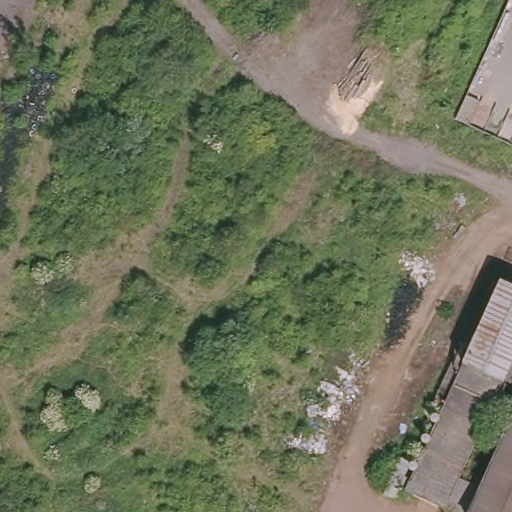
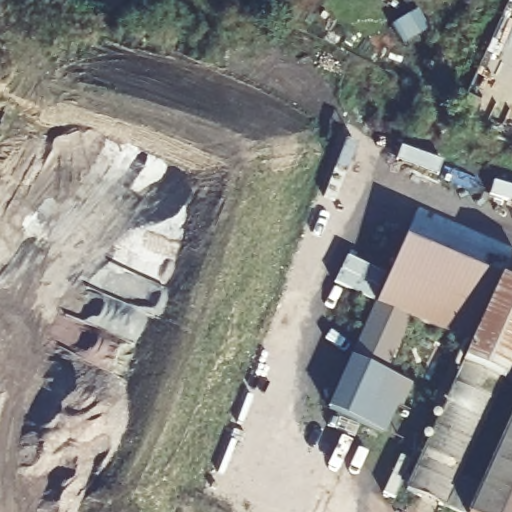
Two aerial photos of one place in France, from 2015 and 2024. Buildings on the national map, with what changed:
new [(500,279),(470,346),(408,319),(375,305),(405,239),(500,279)]
unchanged [(445,406),(434,402),(454,356),(463,359),(498,283),(502,276),(512,280),(512,366),(506,379),(502,378),(457,479),(482,492),(512,426),(512,512),(459,512),(406,488),(445,406)]
new [(330,408),(375,305),(408,319),(375,398),(392,405),(381,431),(330,408)]

